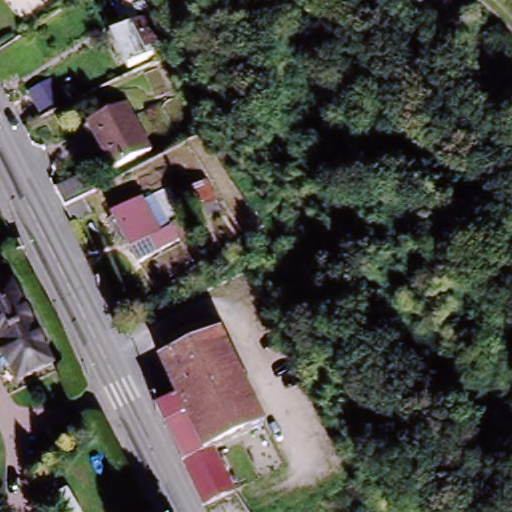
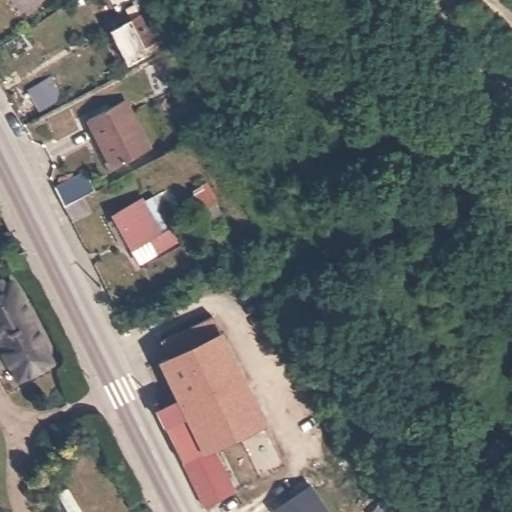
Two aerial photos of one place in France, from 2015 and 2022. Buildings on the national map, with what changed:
unchanged [(41,11),(33,0),(55,0),(41,11)]
unchanged [(147,56),(149,59),(127,70),(113,42),(139,29),(131,14),(144,8),(152,22),(165,46),(147,56)]
unchanged [(60,92),(37,105),(26,86),(50,73),(60,92)]
unchanged [(125,96),(148,139),(115,157),(91,114),(125,96)]
unchanged [(80,224),(72,209),(62,190),(91,174),(101,193),(95,196),(104,211),(80,224)]
unchanged [(204,182),(215,199),(200,208),(189,190),(204,182)]
unchanged [(145,201),(162,233),(170,229),(180,244),(142,265),(115,218),(145,201)]
unchanged [(15,380),(0,349),(0,287),(8,283),(47,364),(15,380)]
unchanged [(244,393),(260,425),(247,432),(211,450),(185,465),(157,414),(177,404),(156,363),(162,360),(159,351),(156,346),(207,321),(244,393)]
unchanged [(211,450),(235,493),(207,507),(185,465),(211,450)]
new [(274,512),(273,511),(312,484),(331,512),(274,512)]

